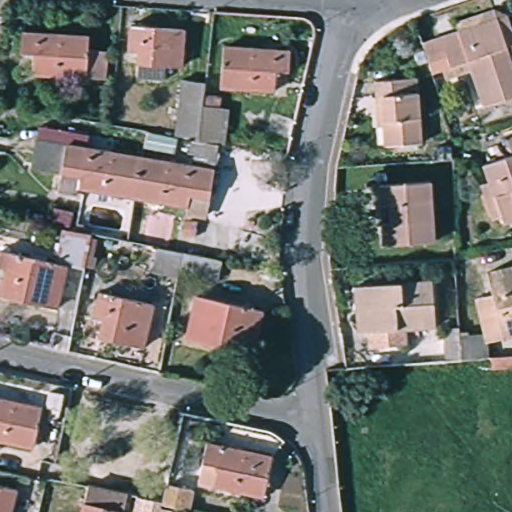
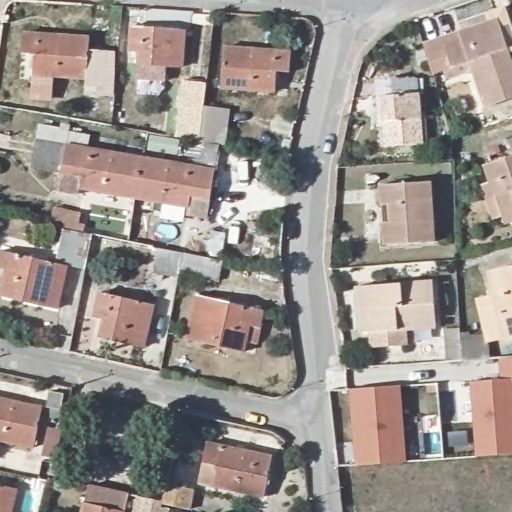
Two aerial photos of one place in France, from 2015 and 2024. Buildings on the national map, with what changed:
unchanged [(485,107),(470,61),(435,73),(425,44),(462,31),(459,22),(497,9),(511,16),(512,19),(512,46),(508,47),(512,57),(512,98),(485,107)]
unchanged [(183,24),(180,61),(137,58),(137,44),(128,44),(130,20),(183,24)]
unchanged [(88,36),(87,51),(107,52),(105,78),(32,73),(32,52),(19,52),(20,32),(88,36)]
unchanged [(289,56),(288,75),(274,75),(273,95),(220,92),(222,51),(289,56)]
unchanged [(175,126),(180,70),(205,72),(197,130),(189,128),(175,126)]
unchanged [(410,93),(420,93),(423,143),(389,145),(388,126),(382,126),(379,81),(410,79),(410,93)]
unchanged [(140,148),(193,156),(195,145),(187,144),(189,128),(197,130),(217,133),(205,206),(184,202),(185,195),(133,186),(140,148)]
unchanged [(77,176),(75,182),(57,179),(61,161),(30,156),(35,130),(140,148),(133,186),(77,176)]
unchanged [(479,184),(489,180),(483,164),(510,155),(507,140),(512,138),(512,220),(503,223),(500,215),(492,218),(479,184)]
unchanged [(431,241),(382,244),(378,184),(427,181),(431,241)]
unchanged [(95,234),(88,268),(68,264),(59,307),(4,294),(10,267),(0,265),(3,250),(57,262),(65,228),(95,234)]
unchanged [(212,280),(172,272),(170,277),(147,271),(152,247),(175,252),(215,260),(212,280)]
unchanged [(448,329),(462,328),(462,335),(487,332),(479,300),(496,295),(490,272),(512,267),(512,337),(491,342),(492,357),(463,359),(448,361),(448,329)]
unchanged [(155,288),(147,330),(103,320),(108,301),(98,299),(103,276),(155,288)]
unchanged [(430,322),(403,324),(405,339),(369,341),(368,326),(357,326),(354,281),(427,276),(430,322)]
unchanged [(265,311),(259,342),(249,340),(247,350),(190,337),(200,295),(265,311)]
new [(512,356),(512,453),(475,456),(469,378),(499,376),(497,356),(512,356)]
new [(397,383),(403,461),(353,465),(347,387),(397,383)]
unchanged [(63,391),(57,419),(45,417),(48,407),(45,407),(49,388),(63,391)]
unchanged [(32,446),(0,439),(0,398),(41,407),(32,446)]
unchanged [(272,455),(263,495),(197,481),(205,441),(272,455)]
unchanged [(131,482),(124,512),(84,512),(92,474),(131,482)]
unchanged [(192,488),(188,508),(162,503),(167,483),(192,488)]
unchanged [(9,512),(0,512),(0,484),(15,487),(9,512)]
unchanged [(152,505),(150,512),(132,512),(135,501),(152,505)]

